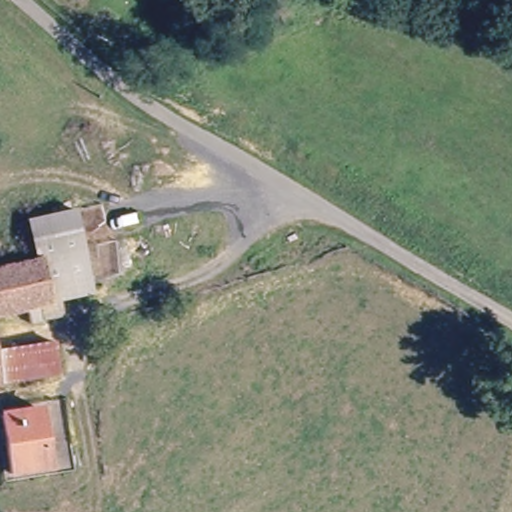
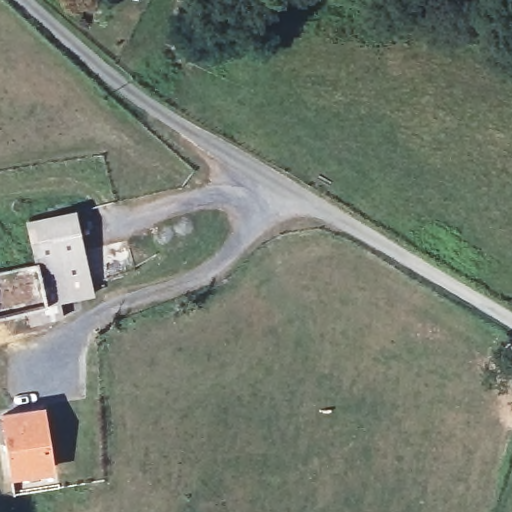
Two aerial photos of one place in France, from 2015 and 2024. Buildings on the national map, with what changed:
unchanged [(32,245),(80,237),(85,269),(118,264),(121,280),(89,285),(90,294),(54,302),(57,322),(43,325),(39,290),(34,258),(32,245)]
unchanged [(0,296),(0,263),(34,258),(39,290),(0,296)]
unchanged [(39,290),(43,325),(20,327),(19,313),(0,316),(0,296),(39,290)]
unchanged [(39,411),(45,470),(9,474),(2,415),(39,411)]

